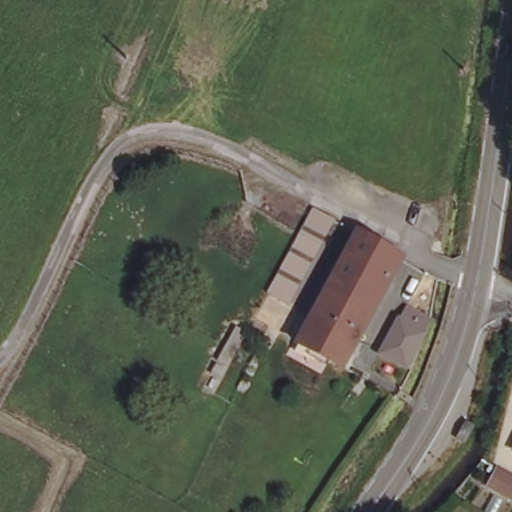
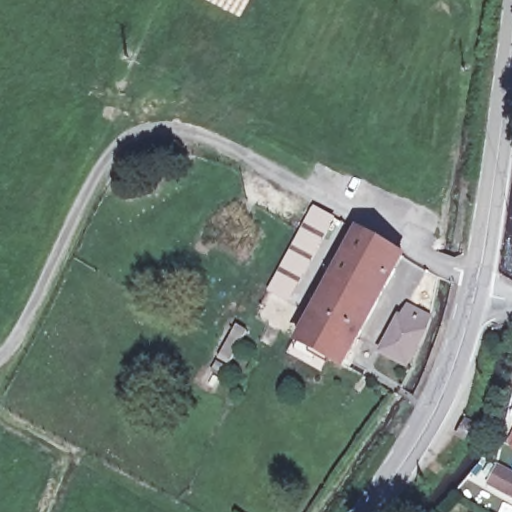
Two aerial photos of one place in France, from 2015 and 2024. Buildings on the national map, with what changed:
unchanged [(288,298),(270,288),(318,209),(335,219),(288,298)]
unchanged [(262,335),(268,325),(273,327),(275,328),(282,317),(305,329),(363,229),(406,252),(342,367),(291,337),(280,331),(273,341),(262,335)]
unchanged [(389,346),(409,303),(434,312),(415,357),(389,346)]
unchanged [(237,325),(247,332),(229,362),(217,355),(237,325)]
unchanged [(512,502),(489,489),(499,471),(512,478),(512,502)]

